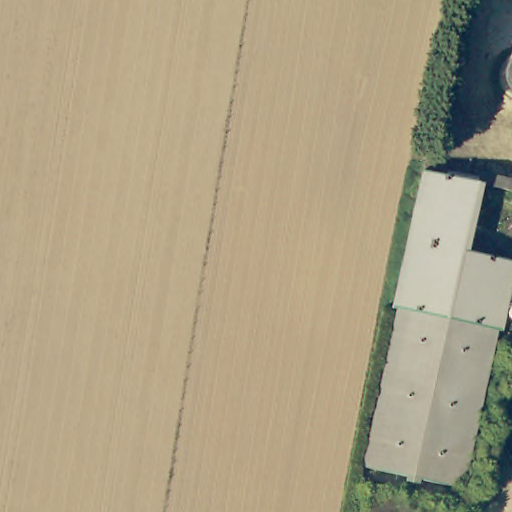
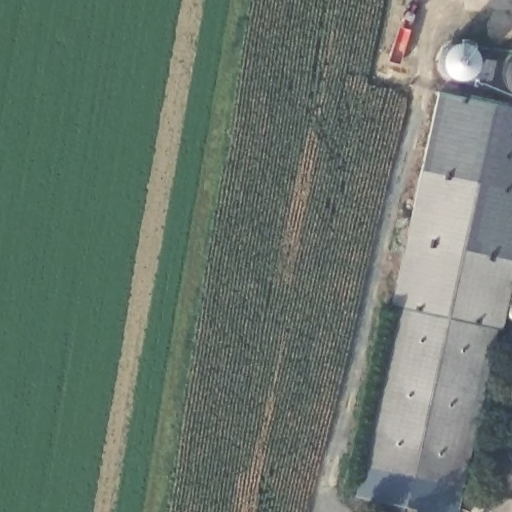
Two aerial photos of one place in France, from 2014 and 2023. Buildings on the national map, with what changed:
new [(444,49),(456,43),(467,44),(475,51),(477,62),(475,74),(465,80),(455,81),(445,76),(440,68),(439,60),(444,49)]
unchanged [(501,73),(505,64),(512,59),(512,94),(502,81),(501,73)]
new [(512,109),(512,261),(470,252),(483,184),(425,172),(435,94),(512,109)]
unchanged [(483,184),(470,252),(512,261),(512,297),(505,331),(500,330),(409,312),(397,309),(425,172),(483,184)]
unchanged [(500,330),(469,486),(378,467),(409,312),(500,330)]

